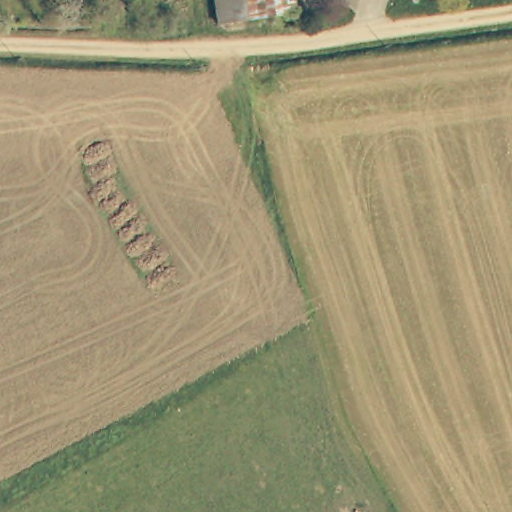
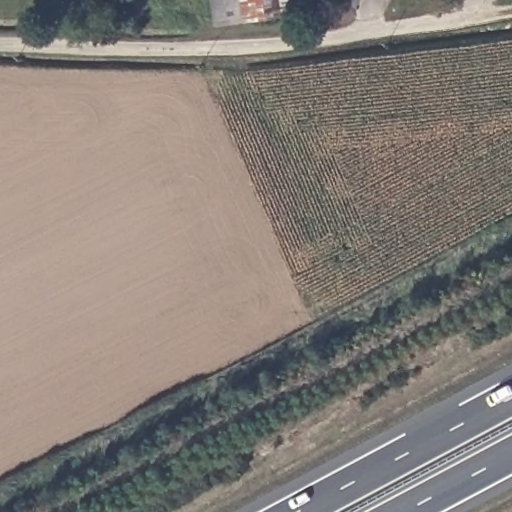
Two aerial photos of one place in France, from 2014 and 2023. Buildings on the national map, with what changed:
unchanged [(253,0),(257,17),(220,22),(217,0),(253,0)]
unchanged [(286,0),(288,7),(308,5),(310,20),(259,27),(257,17),(253,0),(286,0)]

